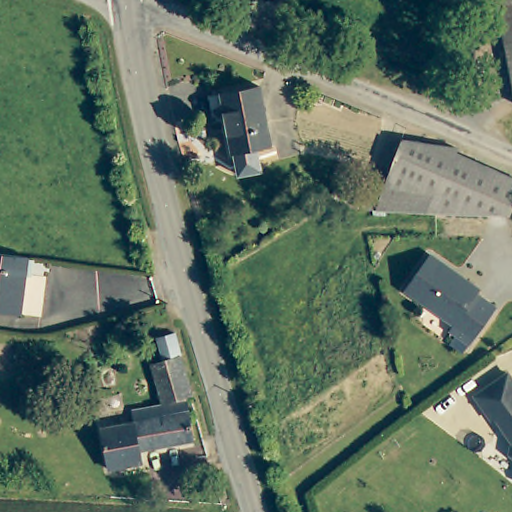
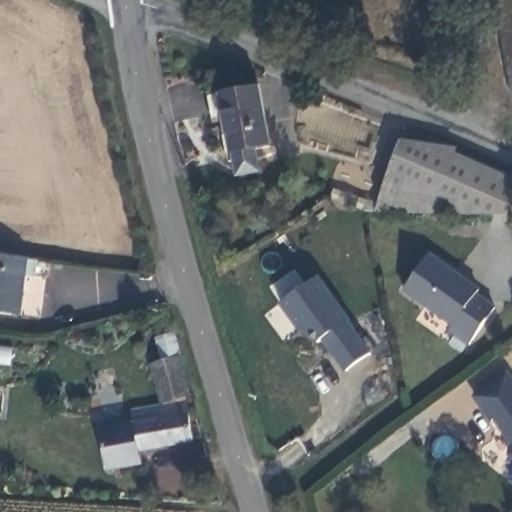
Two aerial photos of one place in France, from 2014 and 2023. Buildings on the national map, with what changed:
unchanged [(499,0),(512,0),(512,71),(499,0)]
unchanged [(260,86),(271,146),(233,153),(226,119),(217,121),(212,96),(222,94),(222,93),(260,86)]
unchanged [(456,147),(455,151),(456,152),(512,177),(512,207),(509,214),(376,211),(388,179),(402,140),(456,147)]
unchanged [(23,315),(0,312),(0,254),(31,258),(23,315)]
unchanged [(479,295),(497,308),(471,345),(451,331),(455,325),(406,291),(431,255),(481,290),(479,295)]
new [(347,373),(323,340),(317,345),(308,332),(297,330),(281,306),(321,277),(374,351),(347,373)]
unchanged [(192,395),(186,397),(194,441),(140,451),(142,463),(109,469),(101,429),(136,422),(133,410),(164,405),(152,364),(164,361),(156,337),(174,333),(192,395)]
unchanged [(504,424),(500,427),(482,403),(512,378),(512,435),(504,424)]

